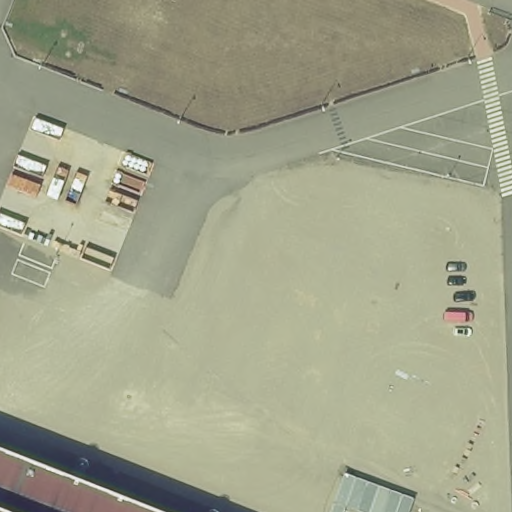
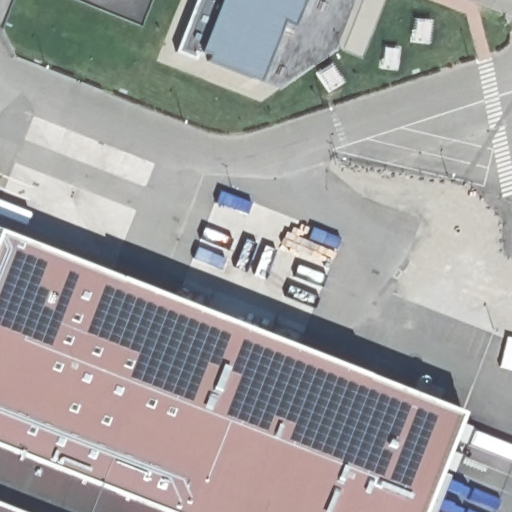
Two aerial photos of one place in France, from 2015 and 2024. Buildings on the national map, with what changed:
new [(283,23),(257,82),(204,62),(206,56),(199,54),(195,61),(177,54),(198,0),(305,0),(294,28),(283,23)]
new [(464,418),(427,512),(167,512),(0,447),(0,239),(1,237),(464,418)]
demolished [(30,456),(168,512),(0,512),(0,442),(30,456)]
new [(167,512),(68,512),(0,485),(0,447),(167,512)]
new [(68,512),(0,512),(0,485),(68,512)]

